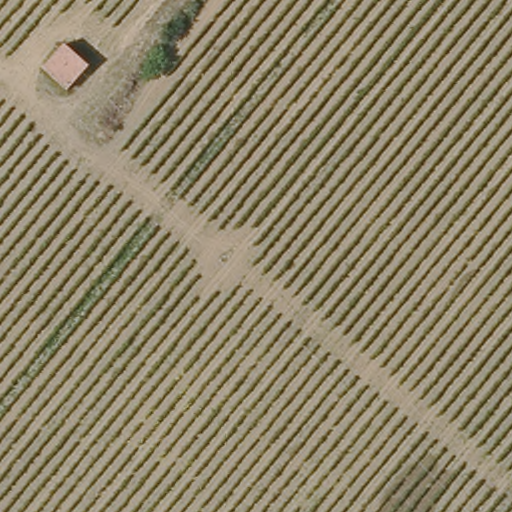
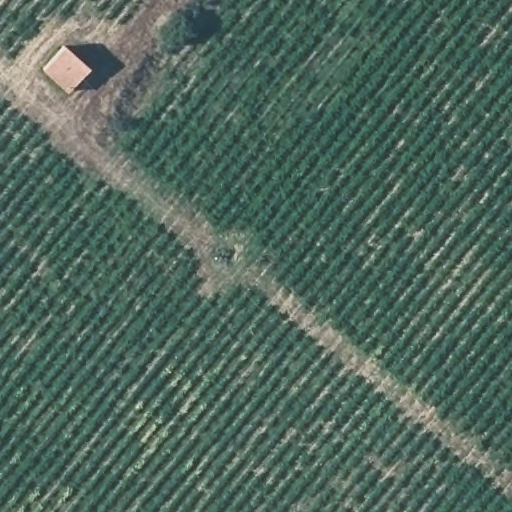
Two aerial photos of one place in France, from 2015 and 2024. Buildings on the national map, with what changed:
unchanged [(63,91),(39,72),(58,51),(84,71),(63,91)]

